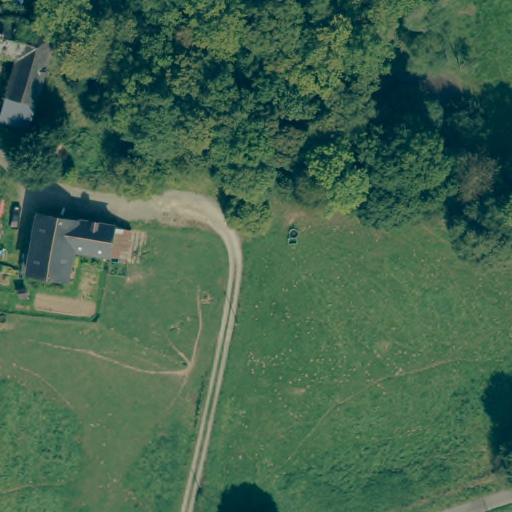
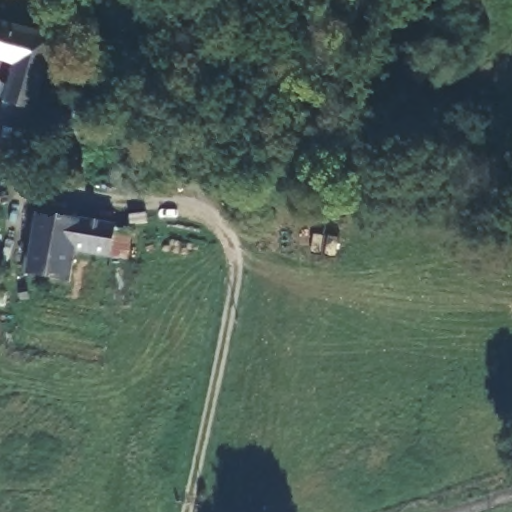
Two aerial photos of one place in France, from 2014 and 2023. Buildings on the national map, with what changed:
unchanged [(0,121),(0,117),(14,67),(0,63),(0,20),(55,36),(27,127),(0,121)]
unchanged [(46,215),(115,225),(108,254),(75,250),(67,280),(32,275),(46,215)]
unchanged [(25,302),(30,301),(34,303),(35,308),(32,313),(26,314),(22,311),(21,306),(25,302)]

